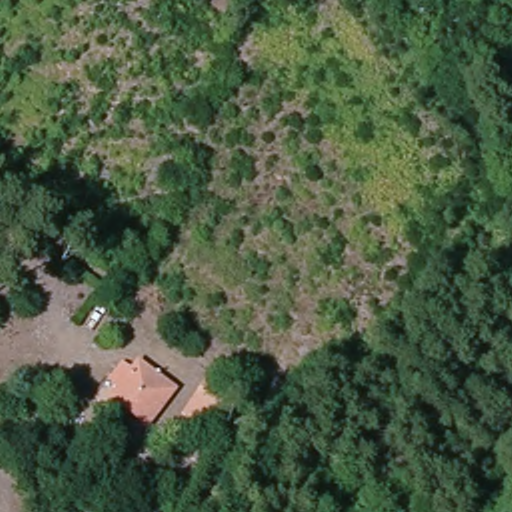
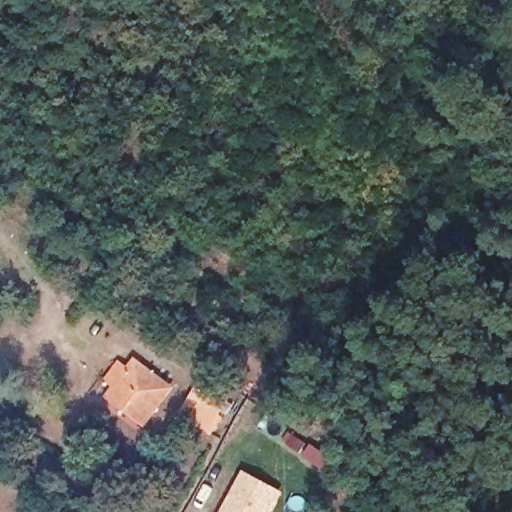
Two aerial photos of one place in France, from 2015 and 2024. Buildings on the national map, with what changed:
unchanged [(81,281),(93,291),(74,315),(62,305),(81,281)]
unchanged [(139,368),(173,396),(146,430),(111,403),(115,398),(104,390),(121,368),(130,376),(139,368)]
unchanged [(208,375),(233,398),(218,420),(190,400),(208,375)]
new [(286,492),(275,512),(223,512),(245,471),(286,492)]

